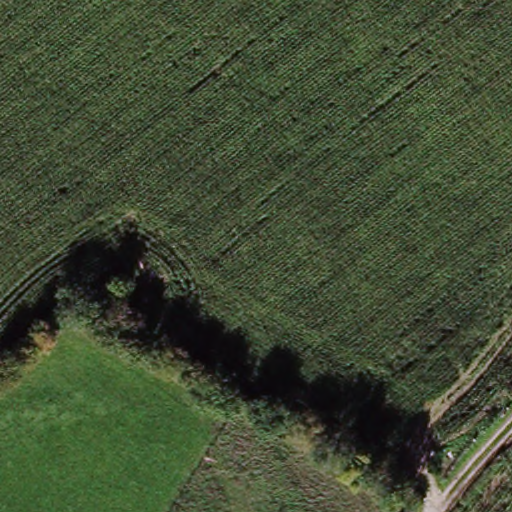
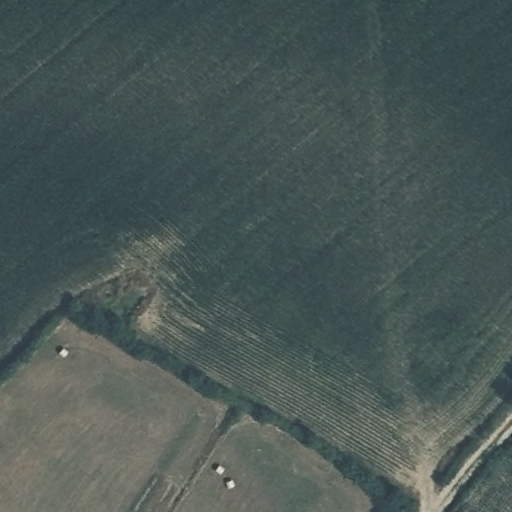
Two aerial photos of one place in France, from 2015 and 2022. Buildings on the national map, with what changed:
[]

